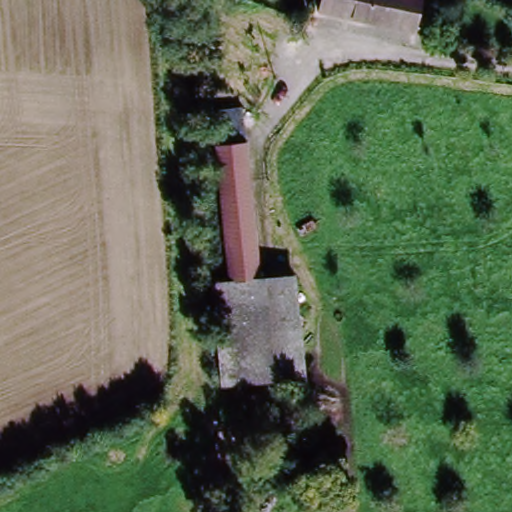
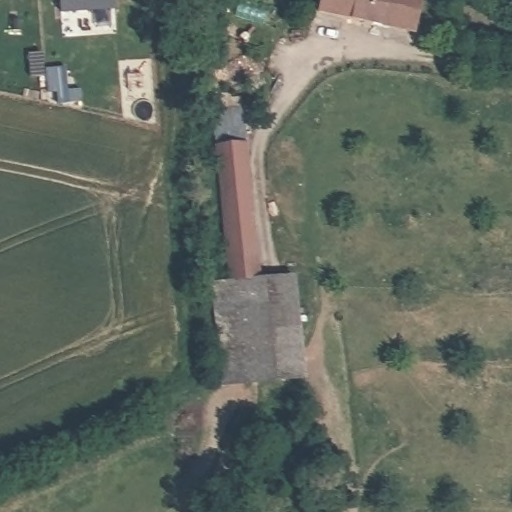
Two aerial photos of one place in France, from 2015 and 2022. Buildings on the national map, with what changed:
new [(60,15),(58,0),(114,0),(115,10),(60,15)]
unchanged [(415,40),(317,19),(321,0),(397,0),(422,5),(415,40)]
unchanged [(214,138),(242,136),(255,286),(226,287),(214,138)]
unchanged [(305,381),(247,385),(217,387),(210,288),(226,287),(255,286),(287,283),(305,381)]

